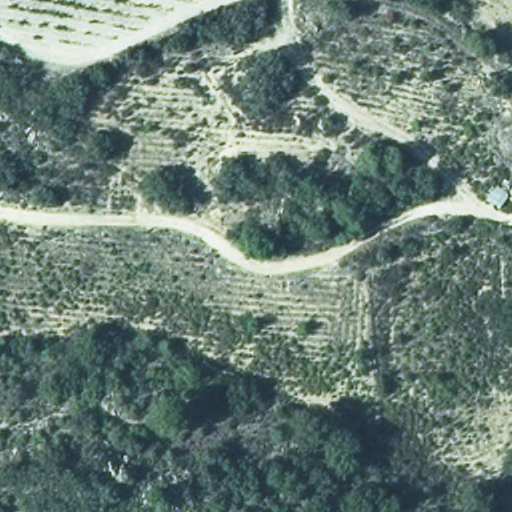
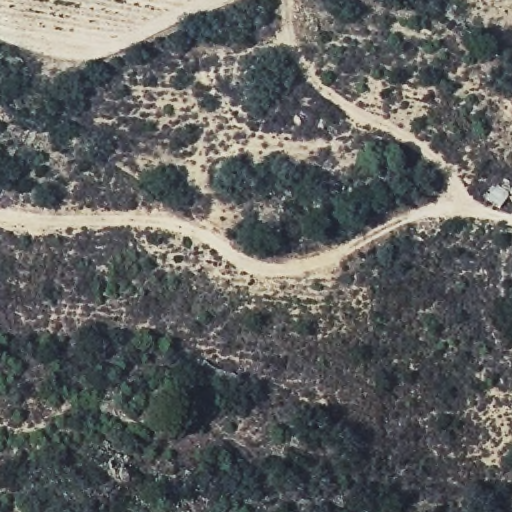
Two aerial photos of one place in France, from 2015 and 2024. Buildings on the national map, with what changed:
unchanged [(510,190),(501,202),(489,196),(500,180),(510,190)]

